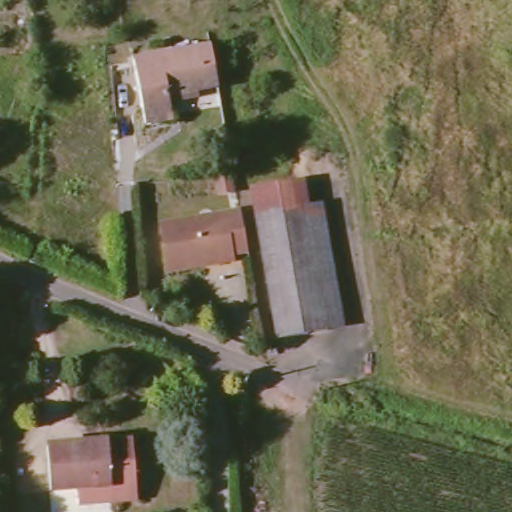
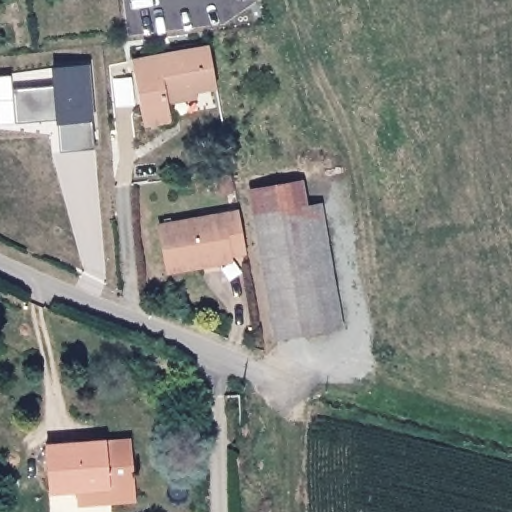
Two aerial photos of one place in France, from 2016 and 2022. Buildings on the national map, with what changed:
unchanged [(164,96),(167,120),(140,125),(129,62),(207,49),(214,87),(164,96)]
new [(60,152),(57,123),(57,118),(17,123),(13,90),(55,86),(52,66),(89,66),(94,120),(92,120),(93,148),(60,152)]
unchanged [(324,330),(298,181),(313,178),(339,328),(324,330)]
unchanged [(273,338),(247,190),(298,181),(324,330),(273,338)]
unchanged [(164,266),(157,226),(237,214),(244,254),(229,256),(230,263),(165,274),(164,266)]
unchanged [(78,490),(52,492),(48,447),(132,440),(137,501),(112,503),(80,505),(78,490)]

